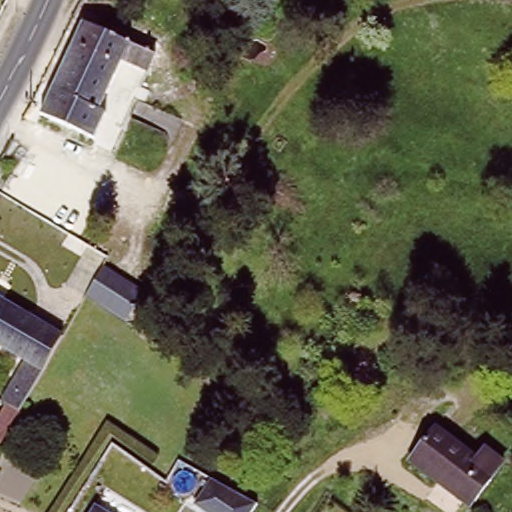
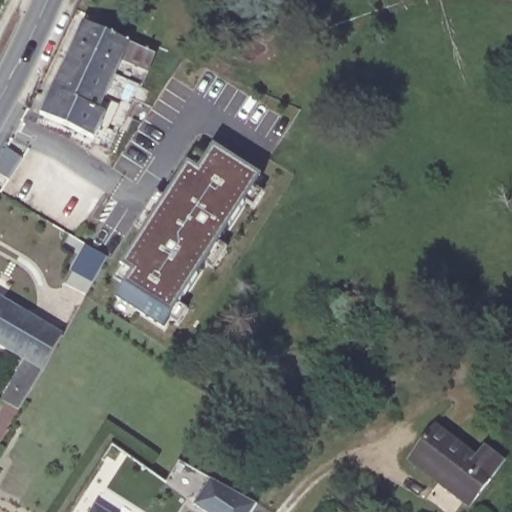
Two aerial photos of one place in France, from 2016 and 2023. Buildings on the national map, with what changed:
unchanged [(163,60),(153,57),(149,66),(123,55),(100,105),(107,109),(95,134),(43,110),(85,19),(165,54),(163,60)]
demolished [(180,193),(137,167),(140,164),(125,155),(150,115),(205,149),(180,193)]
new [(171,314),(165,327),(116,296),(125,286),(132,273),(121,266),(187,164),(198,172),(214,146),(262,178),(171,314)]
unchanged [(0,444),(0,420),(10,406),(5,403),(29,365),(0,347),(0,299),(63,338),(35,387),(20,411),(8,428),(10,429),(0,444)]
unchanged [(470,503),(410,458),(435,424),(477,456),(485,446),(503,459),(470,503)]
unchanged [(260,503),(253,512),(207,512),(190,501),(208,474),(260,503)]
unchanged [(112,512),(83,512),(90,501),(112,512)]

